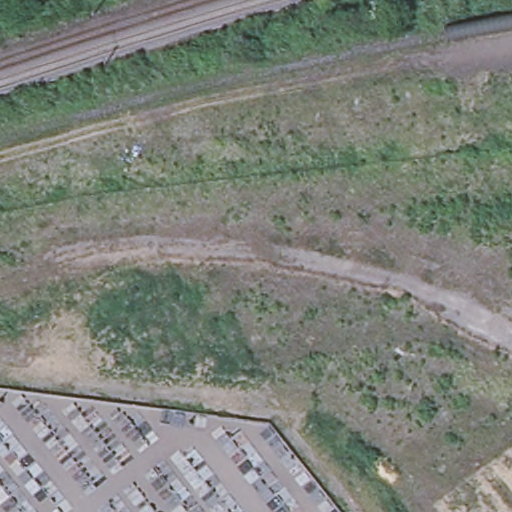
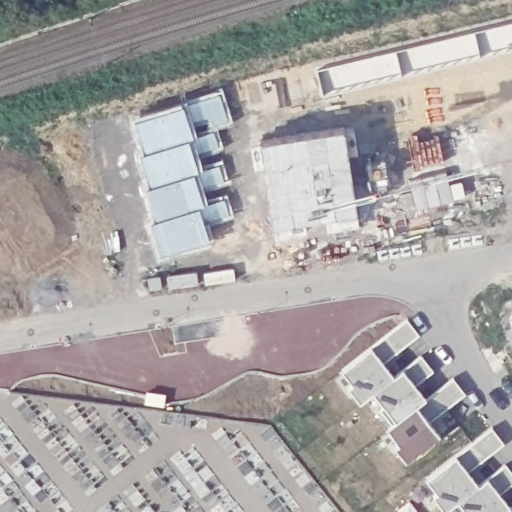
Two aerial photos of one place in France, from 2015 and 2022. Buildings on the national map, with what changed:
new [(323,98),(317,72),(512,24),(512,52),(323,98)]
new [(221,97),(229,123),(212,128),(220,149),(195,158),(200,174),(219,167),(224,184),(200,192),(206,208),(225,203),(230,217),(206,225),(211,244),(162,259),(152,228),(156,225),(146,193),(151,192),(142,159),(147,158),(136,124),(221,97)]
new [(345,138),(359,224),(275,232),(263,149),(345,138)]
new [(406,322),(417,337),(382,364),(392,378),(361,402),(349,387),(354,383),(343,369),(408,318),(409,319),(406,322)]
new [(427,399),(425,401),(393,425),(381,409),(385,406),(374,392),(422,355),(434,371),(415,386),(417,384),(427,399)]
new [(385,362),(395,376),(392,378),(382,364),(385,362)]
new [(455,379),(466,394),(463,396),(428,424),(438,438),(407,461),(395,446),(399,442),(389,429),(425,401),(454,378),(455,379)]
new [(148,393),(167,396),(165,406),(146,404),(148,393)]
new [(428,424),(431,422),(441,434),(438,438),(428,424)]
new [(480,484),(477,488),(446,512),(434,496),(438,493),(427,479),(493,428),(494,429),(506,444),(502,447),(466,474),(470,472),(480,484)]
new [(510,509),(506,512),(467,512),(459,502),(507,464),(512,471),(512,485),(499,496),(501,494),(512,508),(510,509)]
new [(512,508),(512,512),(506,512),(512,508)]

